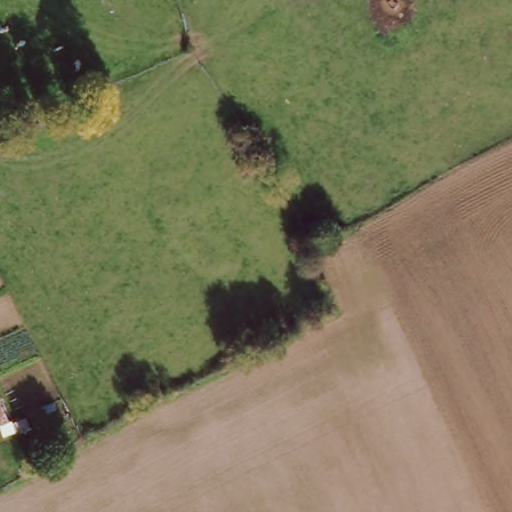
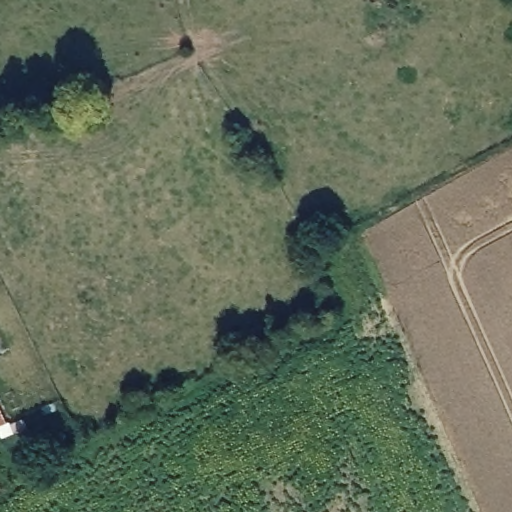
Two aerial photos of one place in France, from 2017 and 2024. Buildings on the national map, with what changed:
unchanged [(24,425),(0,436),(0,416),(3,423),(20,415),(24,425)]

